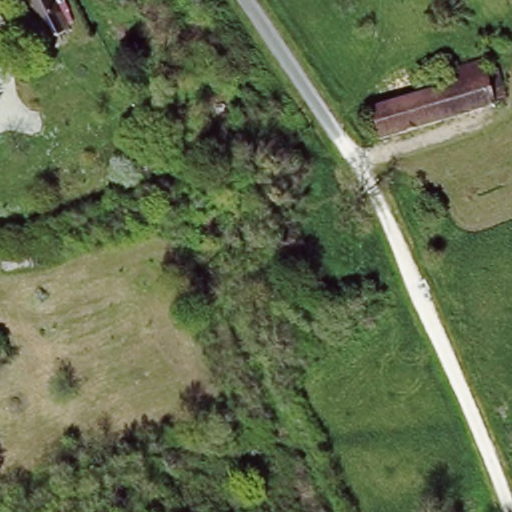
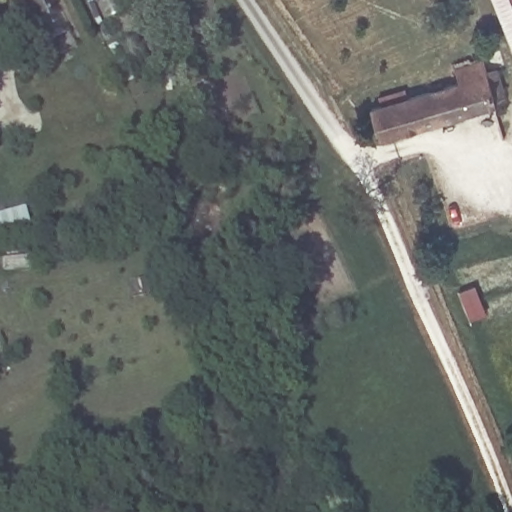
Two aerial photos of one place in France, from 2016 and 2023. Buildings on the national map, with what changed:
unchanged [(30,29),(16,0),(48,0),(56,15),(30,29)]
new [(512,0),(512,44),(496,0),(512,0)]
unchanged [(459,86),(454,71),(481,64),(486,79),(494,77),(499,91),(501,90),(504,90),(507,92),(509,94),(510,96),(509,100),(508,103),(506,105),(503,105),(379,142),(371,113),(459,86)]

